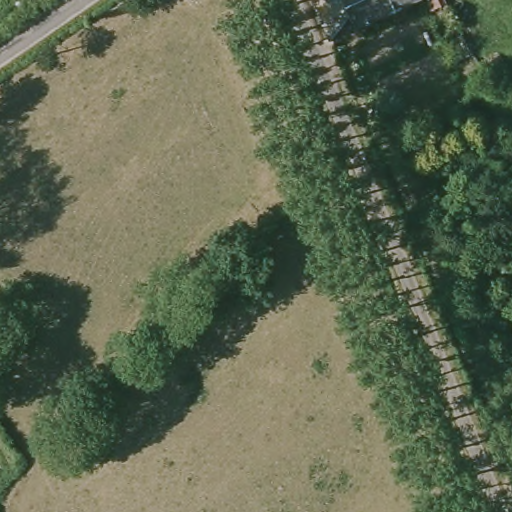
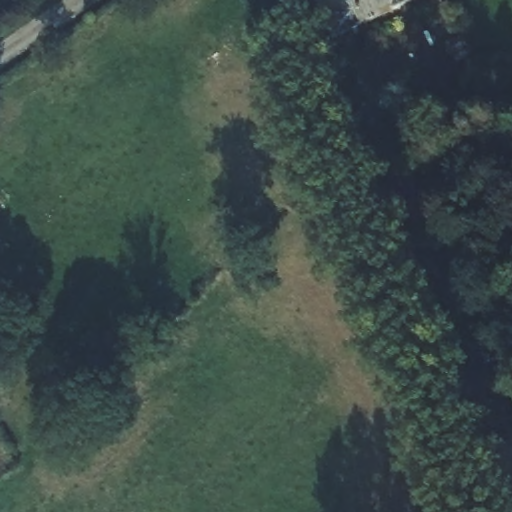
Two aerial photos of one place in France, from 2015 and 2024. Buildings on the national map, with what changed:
unchanged [(370,19),(327,39),(311,0),(412,0),(370,19)]
unchanged [(442,4),(432,10),(428,2),(432,0),(440,0),(442,4)]

